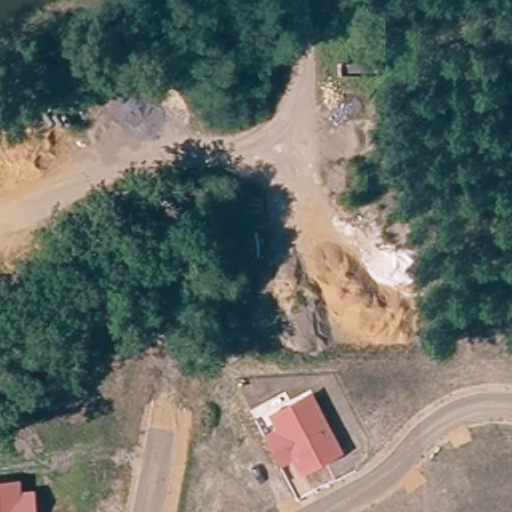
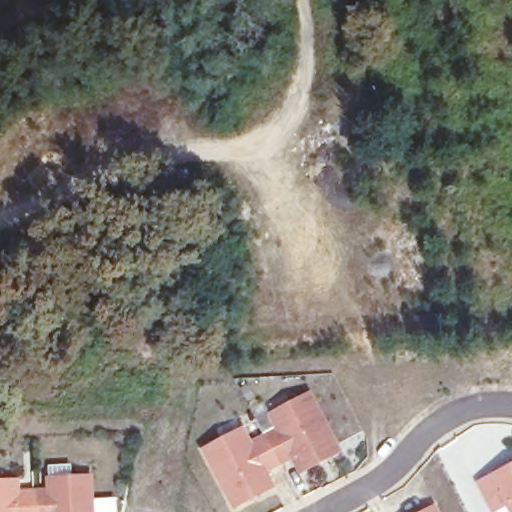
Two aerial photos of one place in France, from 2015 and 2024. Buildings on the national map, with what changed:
unchanged [(343,453),(299,476),(291,461),(278,467),(262,433),(275,427),(269,413),(311,390),(343,453)]
new [(278,467),(268,472),(275,486),(230,510),(199,450),(245,425),(252,439),(262,433),(278,467)]
new [(497,512),(494,512),(477,482),(512,463),(512,512),(511,512),(507,505),(497,512)]
new [(44,477),(91,474),(94,512),(35,512),(33,490),(46,489),(44,477)]
unchanged [(20,490),(33,490),(35,512),(0,512),(0,480),(19,479),(20,490)]
new [(420,512),(436,503),(441,512),(420,512)]

